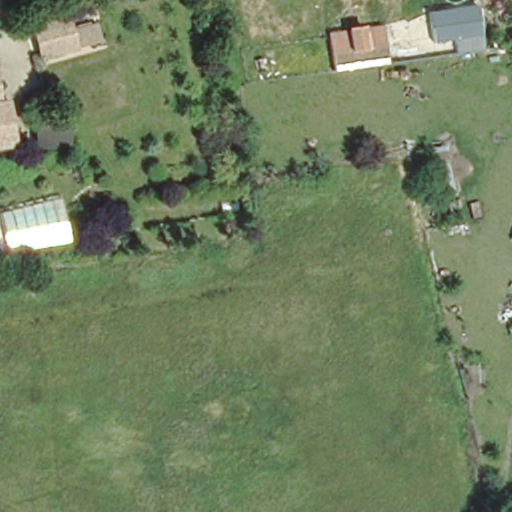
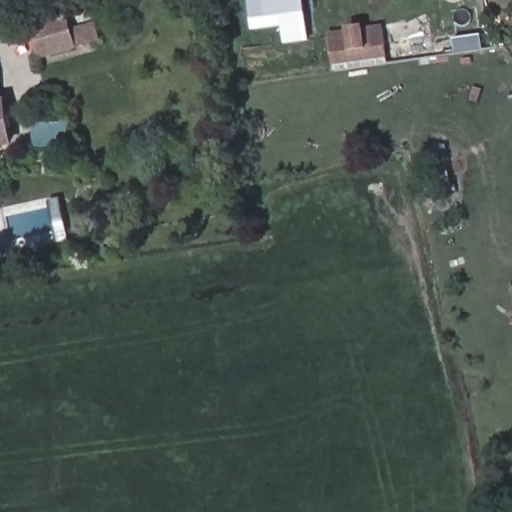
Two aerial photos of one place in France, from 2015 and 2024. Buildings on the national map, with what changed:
new [(287,46),(284,27),(254,31),(251,0),(304,0),(310,42),(287,46)]
unchanged [(482,5),(484,40),(429,44),(426,12),(482,5)]
unchanged [(71,13),(76,28),(98,23),(102,45),(40,63),(30,24),(71,13)]
unchanged [(388,30),(389,62),(335,69),(331,36),(388,30)]
unchanged [(9,151),(0,153),(0,104),(5,104),(9,151)]
unchanged [(33,123),(70,121),(71,146),(34,147),(33,123)]

